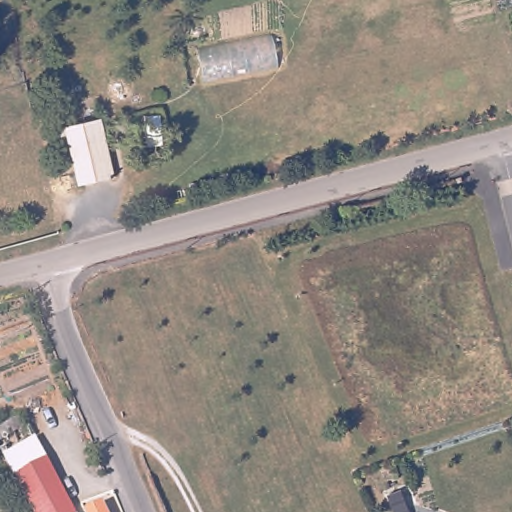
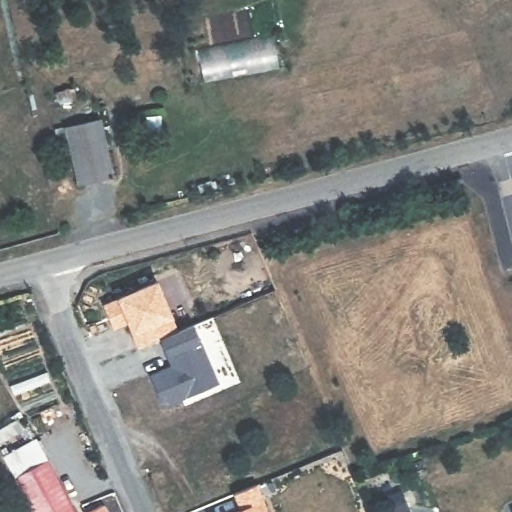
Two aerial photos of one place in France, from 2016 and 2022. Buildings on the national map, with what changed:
unchanged [(277,34),(282,65),(205,79),(202,67),(200,48),(277,34)]
unchanged [(105,118),(119,176),(87,184),(74,136),(64,138),(61,128),(105,118)]
new [(170,364),(167,355),(160,338),(137,347),(132,332),(127,322),(113,328),(102,303),(116,296),(158,279),(174,317),(178,330),(194,323),(201,339),(219,383),(163,407),(149,374),(170,364)]
unchanged [(26,431),(0,446),(0,434),(21,421),(26,431)]
unchanged [(7,454),(40,436),(51,456),(83,512),(38,512),(18,474),(7,454)]
new [(234,492),(256,484),(267,512),(231,512),(240,508),(234,492)]
unchanged [(94,503),(107,499),(113,512),(91,512),(89,506),(94,503)]
new [(512,512),(511,510),(512,510),(512,512)]

